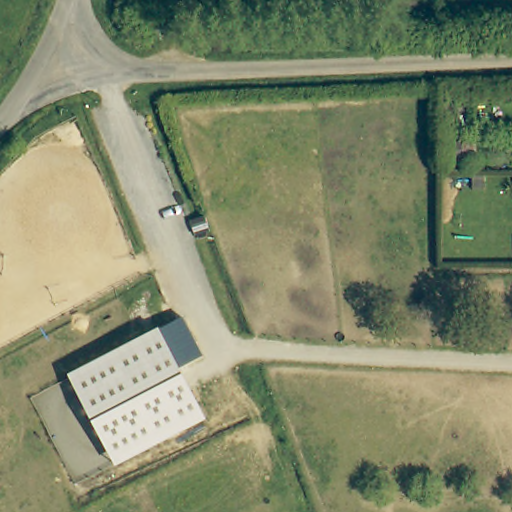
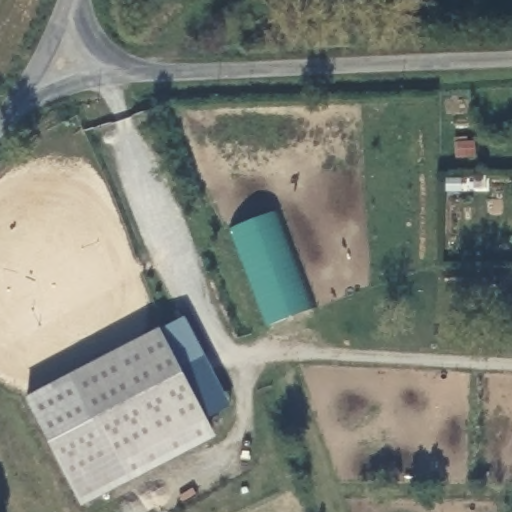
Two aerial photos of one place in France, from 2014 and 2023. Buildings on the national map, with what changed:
new [(277,211),(313,311),(270,327),(234,229),(277,211)]
unchanged [(159,328),(181,316),(200,356),(179,368),(206,421),(114,466),(68,375),(159,328)]
new [(114,466),(206,421),(215,440),(81,507),(25,398),(68,375),(114,466)]

